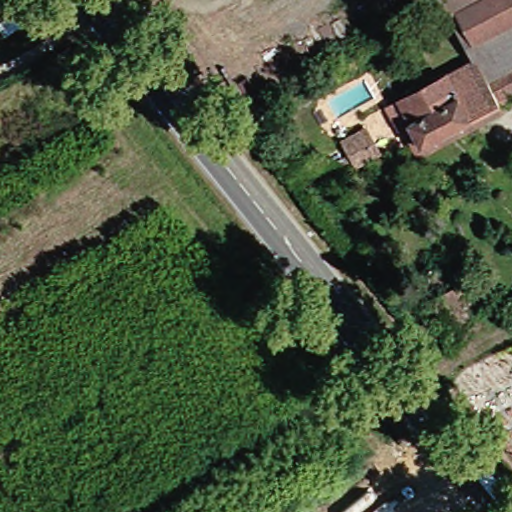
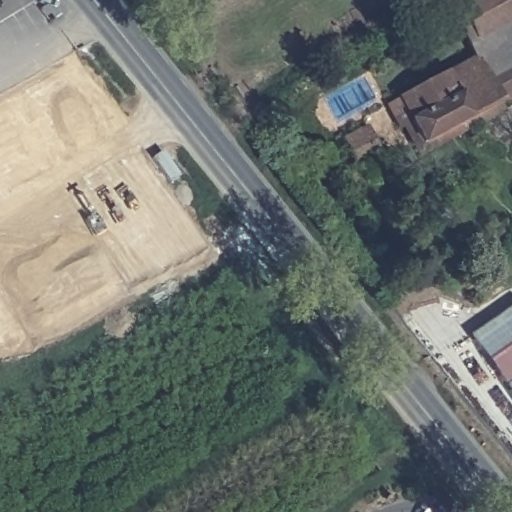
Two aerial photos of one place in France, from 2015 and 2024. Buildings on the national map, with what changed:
unchanged [(416,154),(401,125),(395,128),(383,106),(396,100),(471,59),(438,0),(512,0),(512,95),(510,96),(494,104),(498,111),(416,154)]
unchanged [(0,22),(23,7),(31,19),(7,36),(0,26),(0,22)]
unchanged [(485,326),(455,342),(433,300),(463,284),(485,326)]
new [(467,337),(512,306),(512,401),(467,337)]

